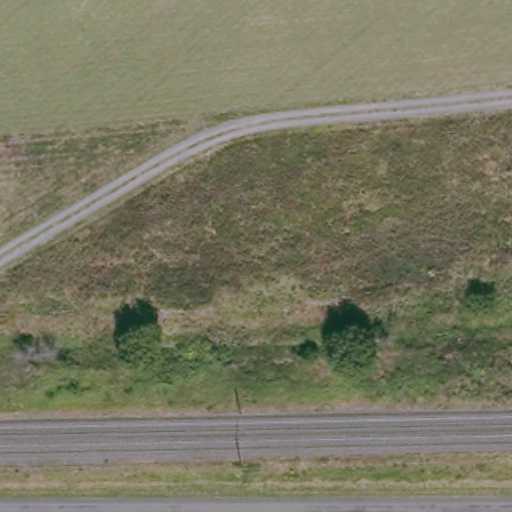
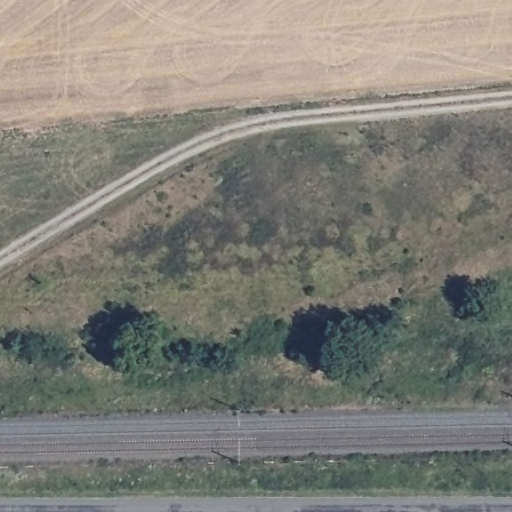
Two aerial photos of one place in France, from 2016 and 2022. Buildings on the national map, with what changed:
[]

